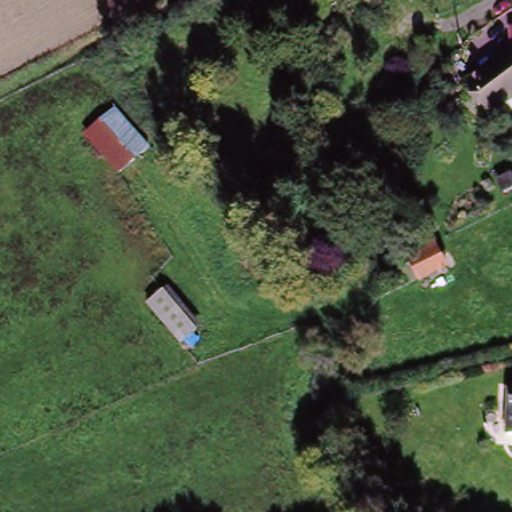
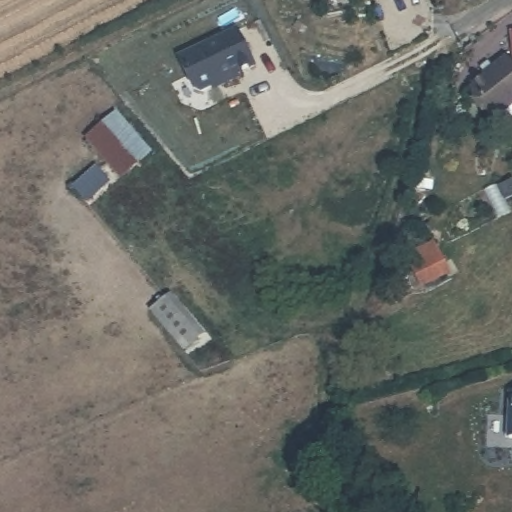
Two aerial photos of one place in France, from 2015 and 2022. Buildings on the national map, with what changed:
demolished [(323,0),(349,0),(326,8),(323,0)]
new [(258,65),(240,75),(242,77),(225,86),(225,83),(203,94),(197,91),(180,58),(238,27),(258,65)]
unchanged [(512,69),(512,103),(492,119),(470,91),(493,71),(490,67),(502,57),(512,69)]
unchanged [(150,155),(117,181),(82,140),(115,112),(150,155)]
unchanged [(443,240),(457,278),(425,291),(414,252),(443,240)]
unchanged [(178,353),(145,312),(165,296),(198,334),(178,353)]
unchanged [(512,440),(508,440),(507,393),(512,393),(512,440)]

